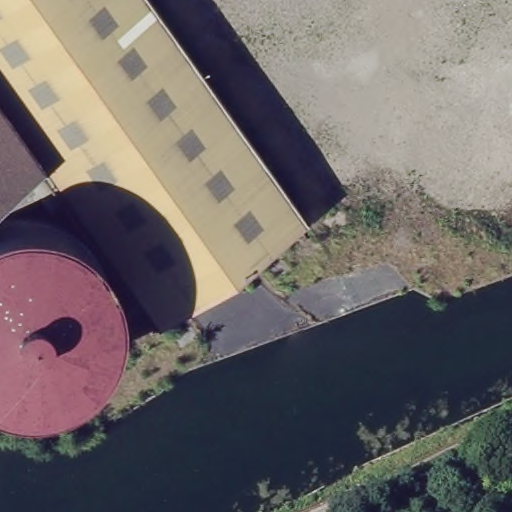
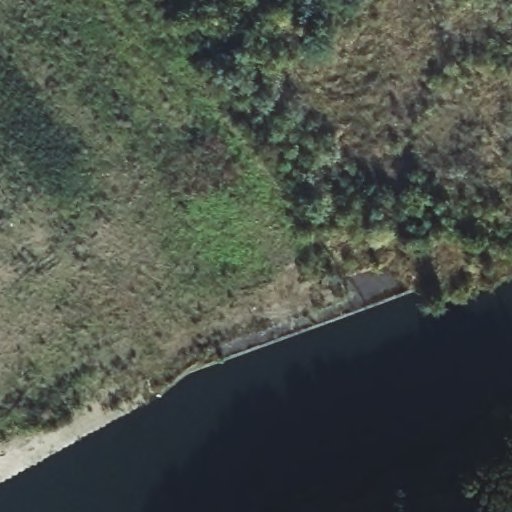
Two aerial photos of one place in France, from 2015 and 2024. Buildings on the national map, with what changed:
demolished [(156,320),(120,272),(64,192),(48,203),(37,189),(18,201),(3,181),(0,183),(0,0),(145,0),(300,217),(156,320)]
demolished [(42,209),(65,218),(85,234),(100,252),(107,273),(110,296),(107,320),(98,343),(85,362),(70,375),(54,385),(35,389),(10,391),(0,389),(0,208),(16,206),(42,209)]

